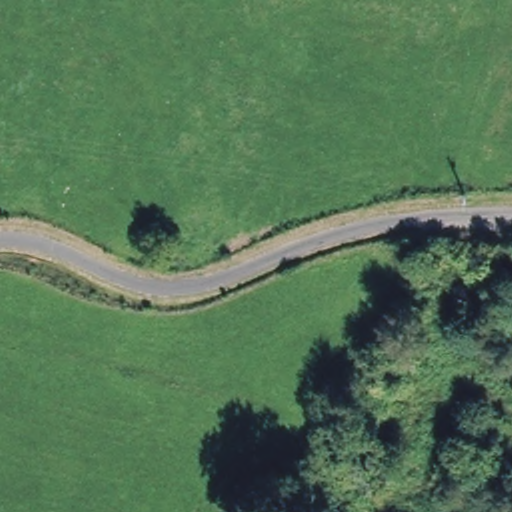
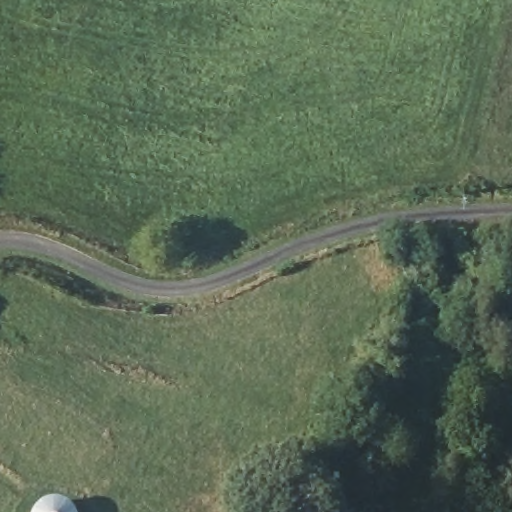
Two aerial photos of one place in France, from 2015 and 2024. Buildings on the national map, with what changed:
new [(37,507),(45,502),(54,501),(63,502),(70,507),(74,512),(34,512),(37,507)]

